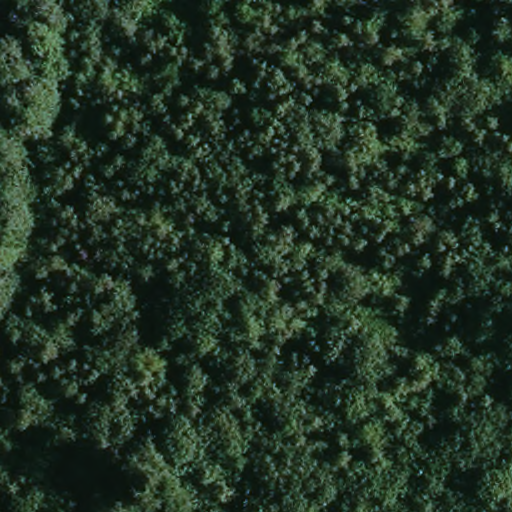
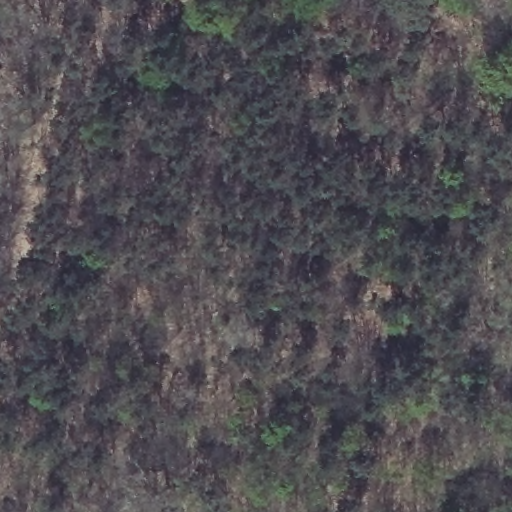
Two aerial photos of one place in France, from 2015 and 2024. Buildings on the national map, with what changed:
[]

